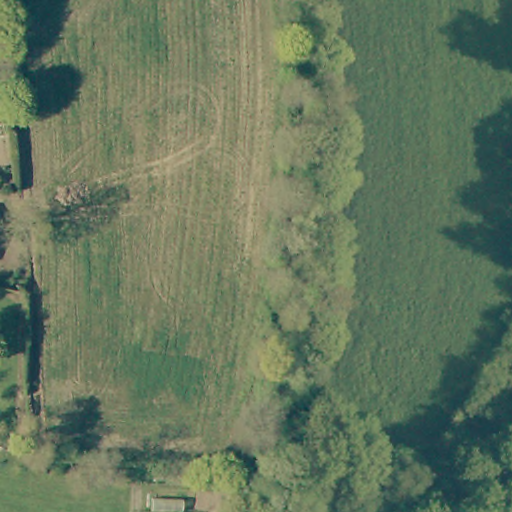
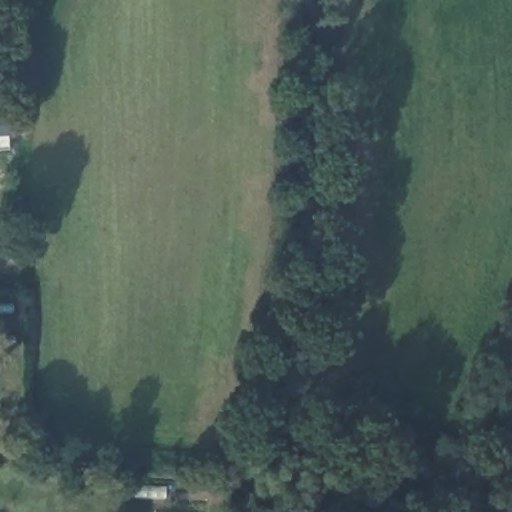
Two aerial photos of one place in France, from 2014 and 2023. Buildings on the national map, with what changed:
unchanged [(31,209),(26,212),(23,205),(27,202),(31,209)]

